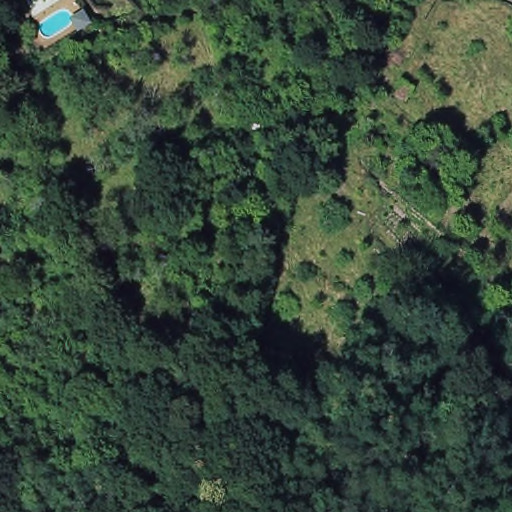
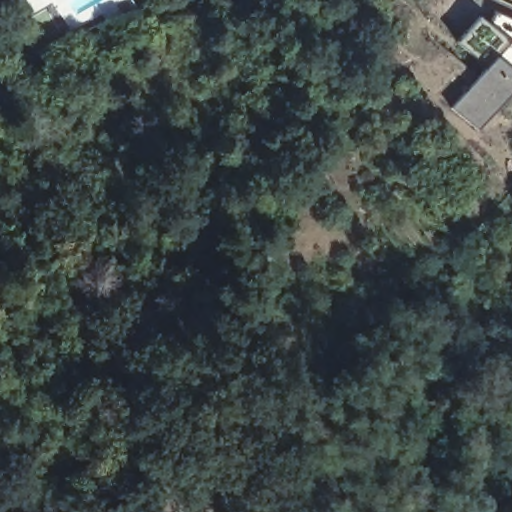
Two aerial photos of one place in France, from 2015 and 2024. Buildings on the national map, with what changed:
unchanged [(18,0),(28,0),(21,5),(18,0)]
new [(512,18),(512,88),(486,67),(458,42),(468,30),(480,39),(495,11),(512,18)]
new [(512,88),(512,89),(480,129),(455,107),(486,67),(512,88)]
unchanged [(419,88),(413,98),(402,92),(408,82),(419,88)]

